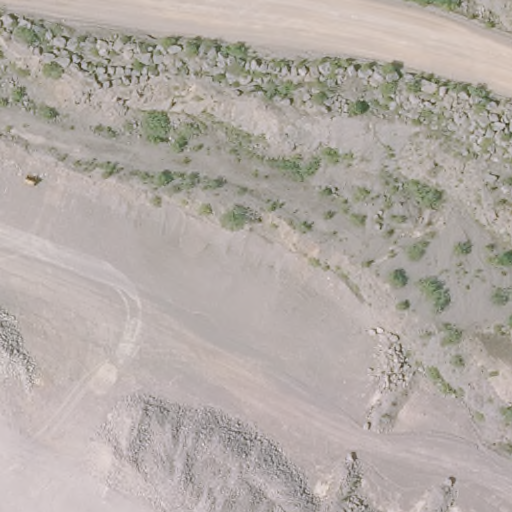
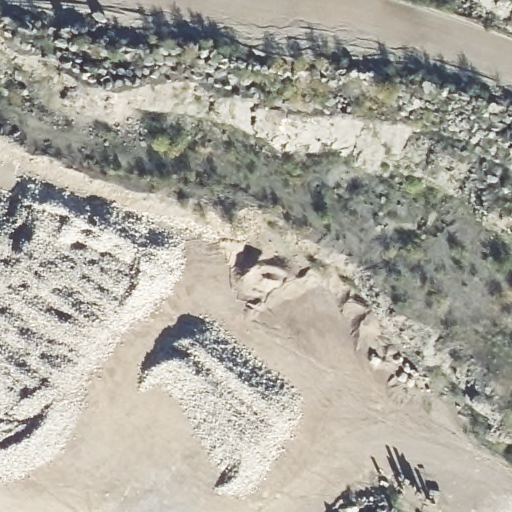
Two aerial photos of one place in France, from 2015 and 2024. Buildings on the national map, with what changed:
[]

